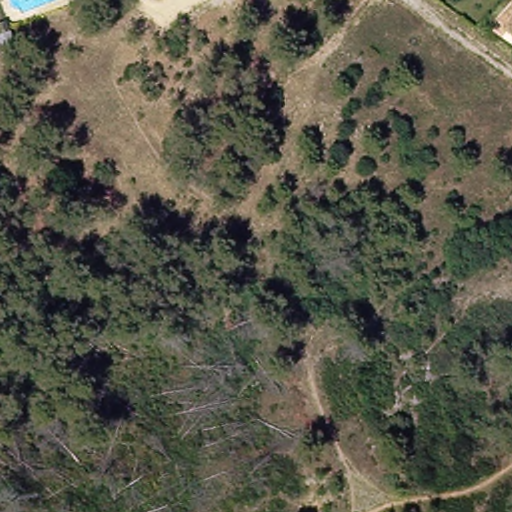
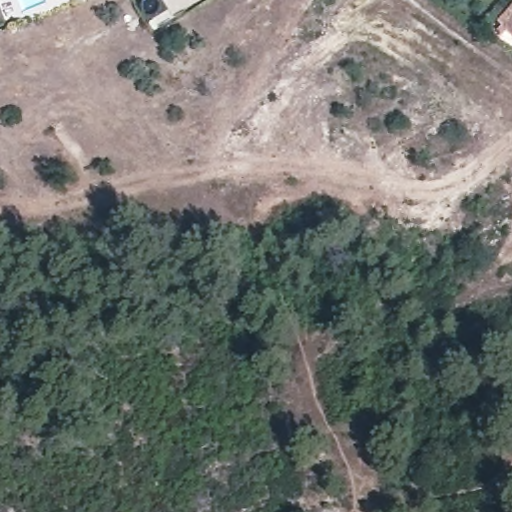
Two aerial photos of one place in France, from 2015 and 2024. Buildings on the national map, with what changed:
unchanged [(512,16),(512,24),(508,20),(512,16)]
unchanged [(512,25),(512,33),(508,29),(512,25)]

